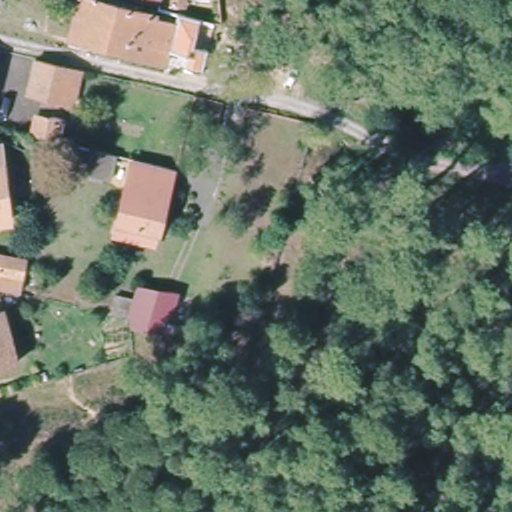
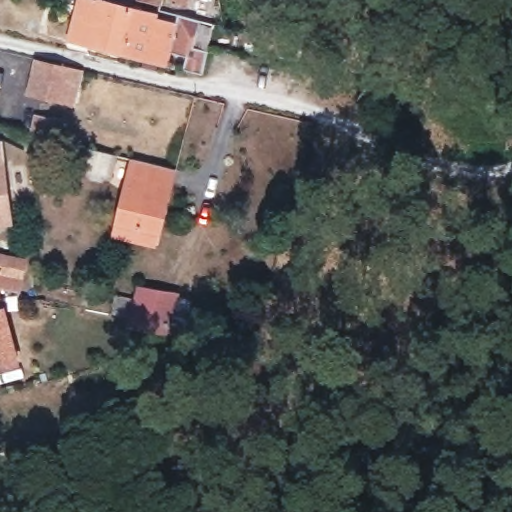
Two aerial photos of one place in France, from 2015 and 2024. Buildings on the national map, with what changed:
unchanged [(79,0),(102,0),(137,10),(133,30),(125,29),(121,51),(68,36),(79,0)]
unchanged [(168,4),(169,0),(188,0),(186,9),(168,4)]
unchanged [(125,29),(133,30),(137,10),(149,13),(149,18),(170,25),(161,62),(121,51),(125,29)]
unchanged [(181,70),(188,46),(204,50),(199,74),(181,70)]
unchanged [(80,70),(71,100),(28,88),(38,56),(80,70)]
unchanged [(35,119),(58,124),(54,139),(29,132),(35,119)]
unchanged [(105,173),(63,163),(69,141),(109,152),(105,173)]
unchanged [(117,224),(132,161),(173,171),(157,233),(154,245),(115,235),(117,224)]
unchanged [(4,219),(0,220),(0,187),(4,219)]
unchanged [(0,363),(0,255),(1,255),(24,260),(18,291),(0,287),(21,357),(0,363)]
unchanged [(133,321),(135,313),(144,315),(149,295),(160,297),(166,298),(159,326),(152,325),(133,321)]

